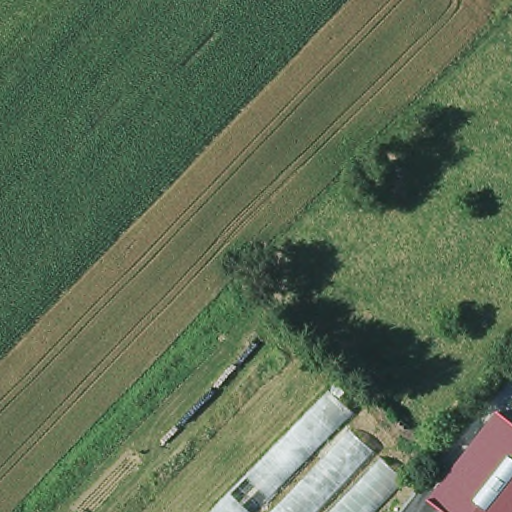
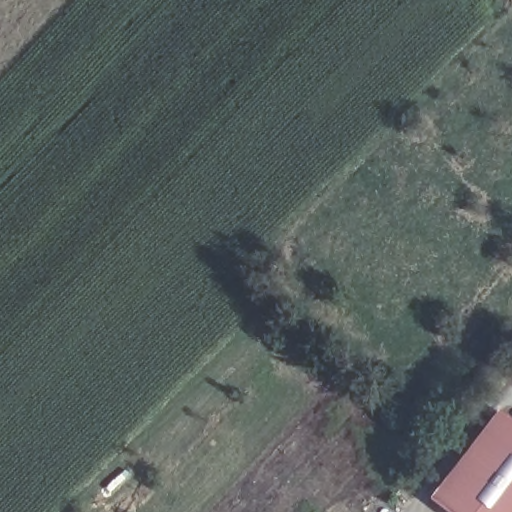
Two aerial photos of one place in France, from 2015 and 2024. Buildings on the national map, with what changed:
demolished [(359,416),(350,425),(408,481),(378,512),(213,512),(332,391),(359,416)]
unchanged [(497,413),(512,424),(512,512),(444,512),(430,501),(497,413)]

